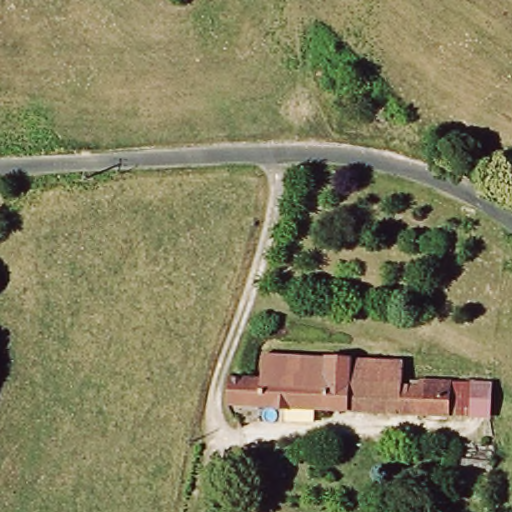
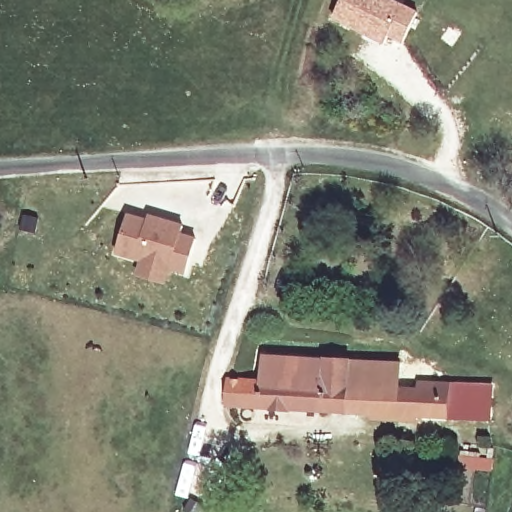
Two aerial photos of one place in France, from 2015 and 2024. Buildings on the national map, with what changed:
new [(404,42),(389,36),(384,43),(333,20),(342,0),(397,0),(419,10),(404,42)]
new [(146,221),(148,216),(160,220),(182,227),(179,235),(196,240),(184,273),(115,252),(126,215),(146,221)]
unchanged [(239,377),(271,378),(274,355),(409,364),(408,385),(428,385),(497,388),(495,421),(237,405),(239,377)]

